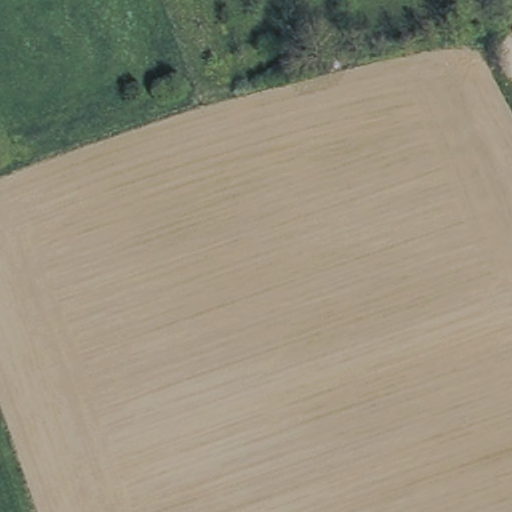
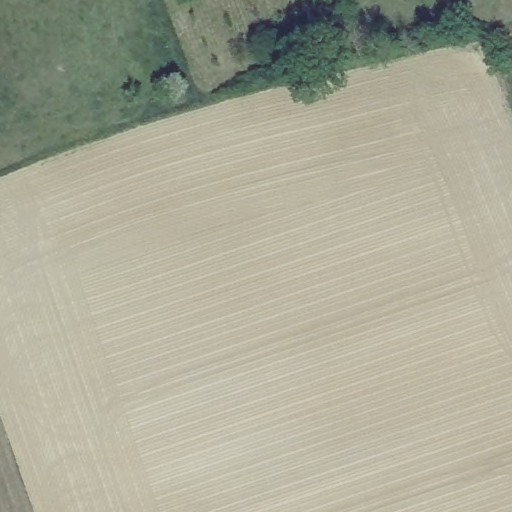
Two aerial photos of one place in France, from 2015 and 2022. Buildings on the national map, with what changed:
[]

